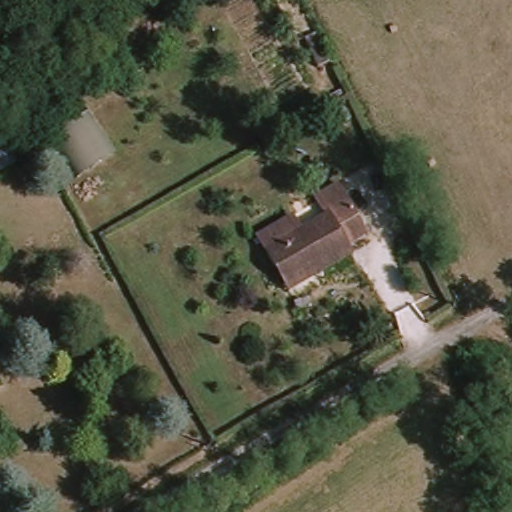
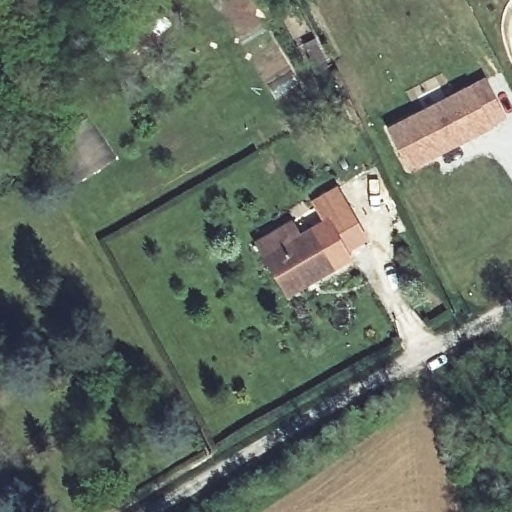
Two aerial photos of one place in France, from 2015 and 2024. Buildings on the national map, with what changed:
new [(482,76),(501,114),(487,121),(488,123),(404,166),(384,126),(468,84),(482,76)]
unchanged [(50,144),(89,120),(114,155),(79,185),(50,144)]
unchanged [(283,289),(266,261),(328,224),(316,207),(338,192),(370,237),(351,250),(356,258),(319,281),(290,299),(283,289)]
new [(254,242),(293,220),(301,233),(324,219),(328,224),(266,261),(254,242)]

